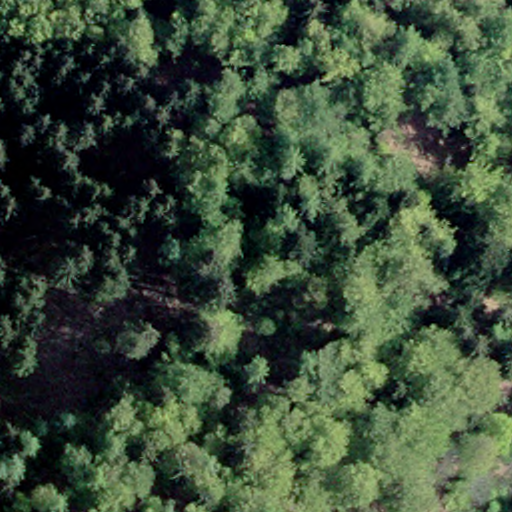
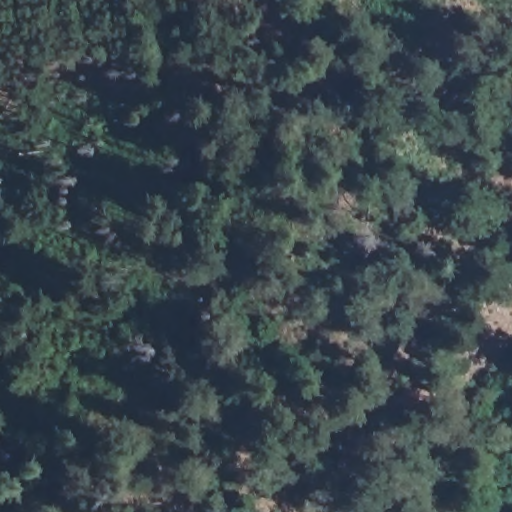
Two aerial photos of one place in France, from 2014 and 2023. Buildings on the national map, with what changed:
[]

